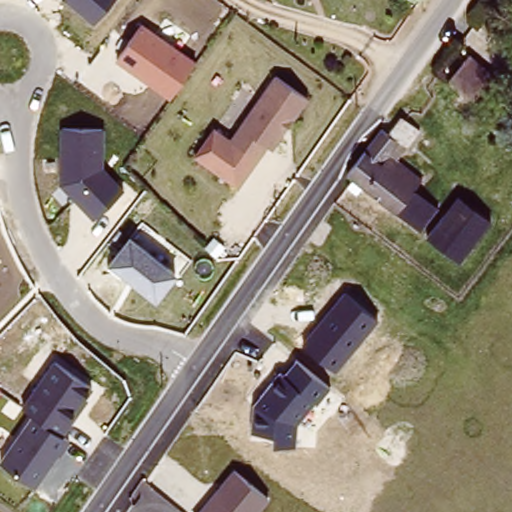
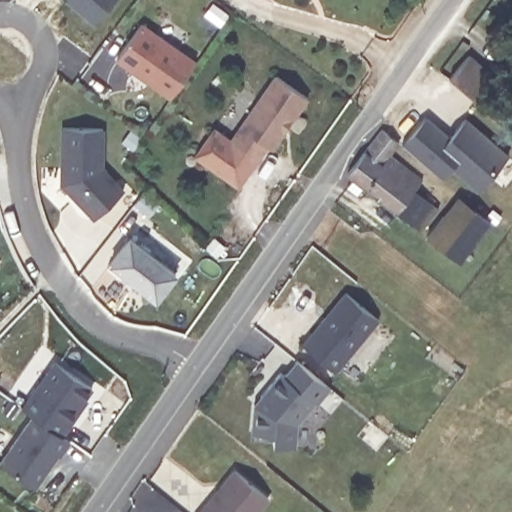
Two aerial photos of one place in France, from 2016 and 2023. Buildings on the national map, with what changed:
unchanged [(112,0),(92,21),(66,0),(112,0)]
unchanged [(117,59),(143,21),(197,59),(171,96),(117,59)]
unchanged [(447,67),(467,44),(492,65),(472,88),(447,67)]
unchanged [(310,97),(272,151),(267,147),(238,190),(193,157),(215,125),(232,138),(274,76),(310,97)]
new [(428,114),(450,134),(464,116),(510,154),(480,190),(453,167),(443,180),(405,144),(428,114)]
unchanged [(59,186),(59,126),(103,128),(103,169),(123,188),(93,219),(59,186)]
unchanged [(405,144),(397,155),(427,179),(418,190),(442,210),(425,236),(354,179),(388,131),(405,144)]
unchanged [(460,192),(494,216),(463,261),(427,239),(460,192)]
unchanged [(107,262),(128,236),(177,274),(157,300),(107,262)]
unchanged [(300,343),(342,292),(375,320),(336,372),(300,343)]
unchanged [(297,421),(295,447),(273,445),(275,433),(253,433),(255,396),(290,357),(328,387),(297,421)]
unchanged [(0,460),(30,415),(20,408),(50,361),(93,389),(63,432),(71,438),(33,480),(0,460)]
unchanged [(270,498),(258,512),(196,512),(231,468),(270,498)]

